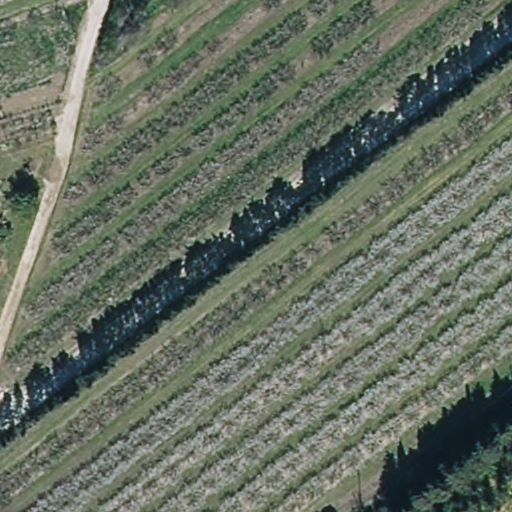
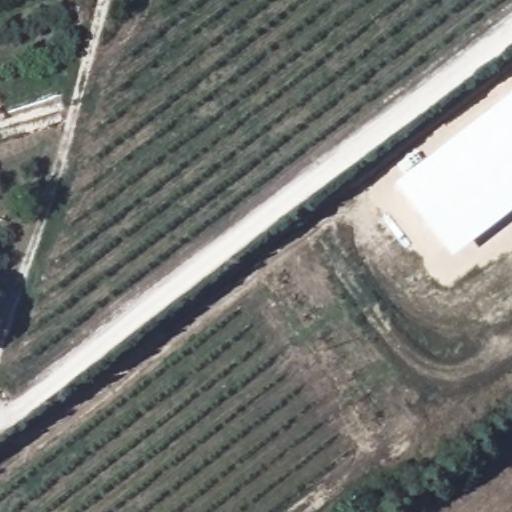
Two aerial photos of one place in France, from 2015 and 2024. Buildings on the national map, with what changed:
new [(452,258),(396,185),(512,95),(512,212),(452,258)]
unchanged [(304,210),(308,215),(296,226),(291,219),(304,210)]

